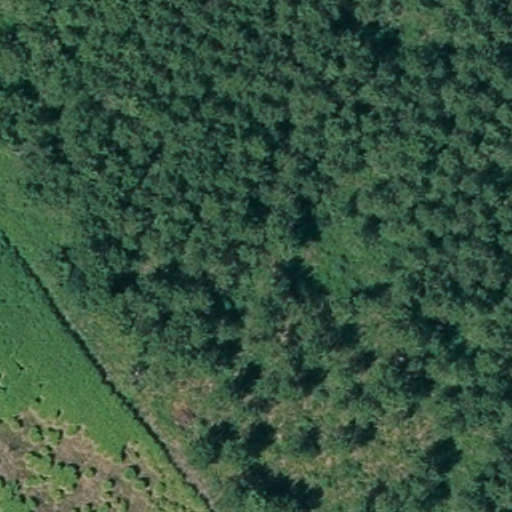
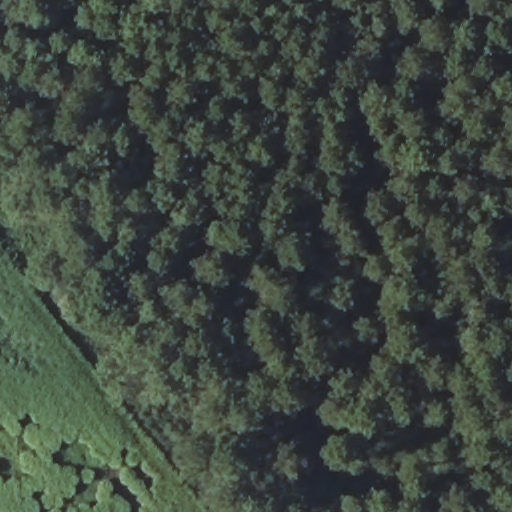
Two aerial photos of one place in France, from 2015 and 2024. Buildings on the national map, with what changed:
[]

